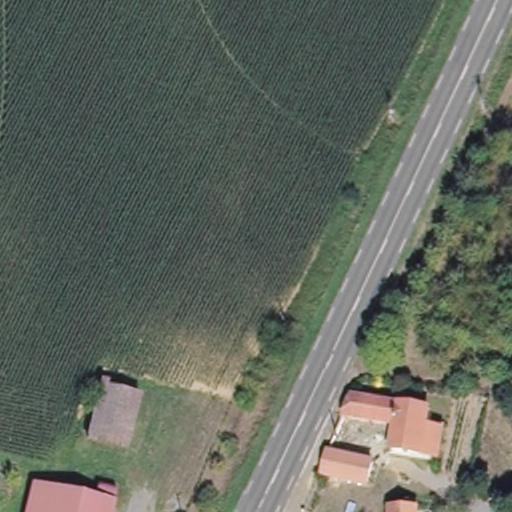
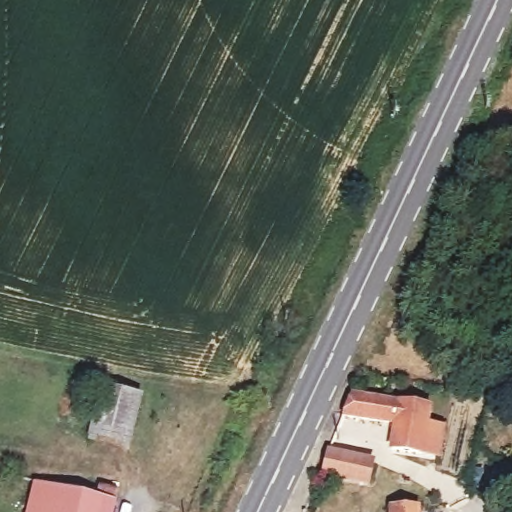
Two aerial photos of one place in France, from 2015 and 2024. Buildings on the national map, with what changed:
unchanged [(99,388),(100,388),(102,380),(110,382),(109,388),(143,396),(131,453),(122,450),(122,446),(96,441),(95,445),(86,442),(99,388)]
unchanged [(433,402),(425,451),(390,445),(393,421),(341,411),(352,386),(433,402)]
unchanged [(370,458),(365,487),(317,475),(324,448),(370,458)]
unchanged [(96,496),(101,484),(119,488),(116,500),(121,502),(119,512),(31,512),(39,482),(96,496)]
unchanged [(422,512),(388,512),(388,501),(423,502),(422,512)]

